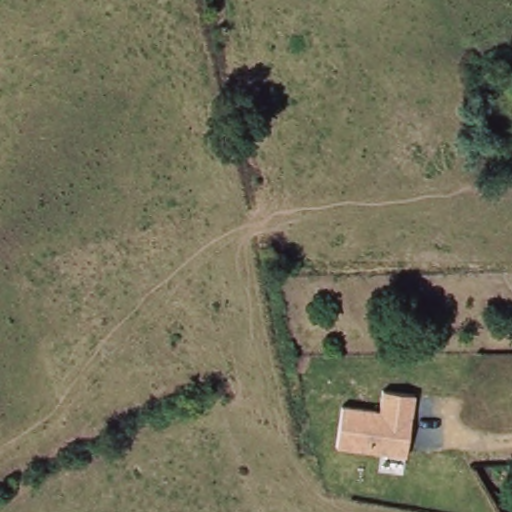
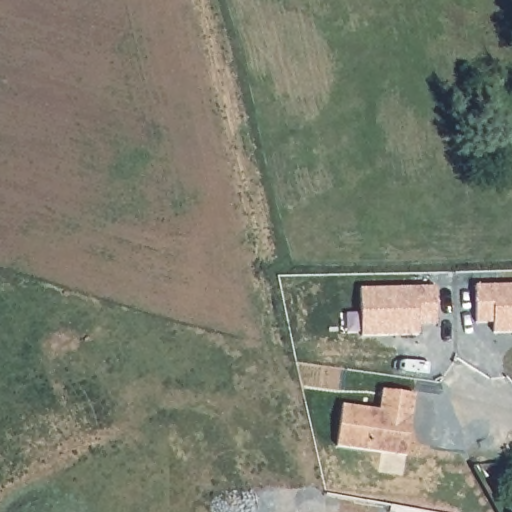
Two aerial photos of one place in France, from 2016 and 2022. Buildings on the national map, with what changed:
new [(475,323),(474,286),(512,285),(512,333),(493,334),(493,323),(475,323)]
new [(361,338),(360,290),(435,286),(436,324),(418,326),(418,336),(361,338)]
unchanged [(415,393),(406,455),(338,445),(345,404),(381,409),(384,389),(415,393)]

